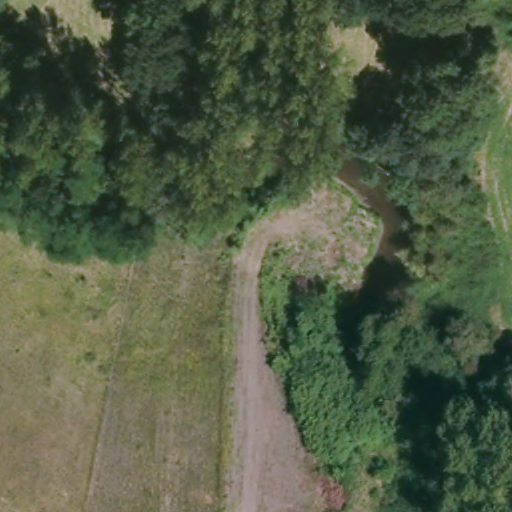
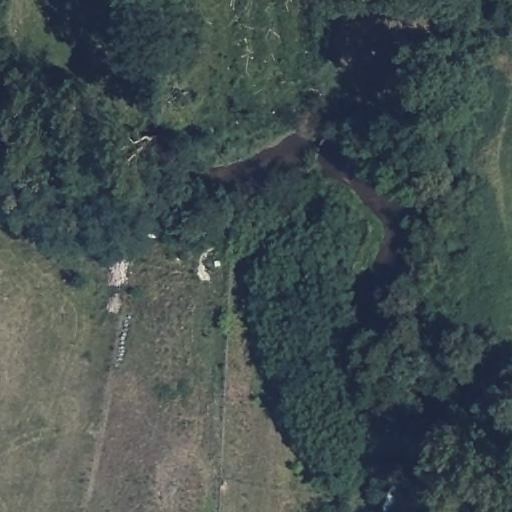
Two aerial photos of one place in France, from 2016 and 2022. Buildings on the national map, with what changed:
[]

